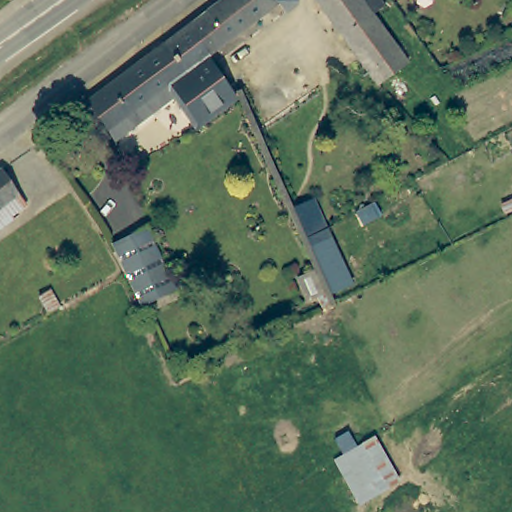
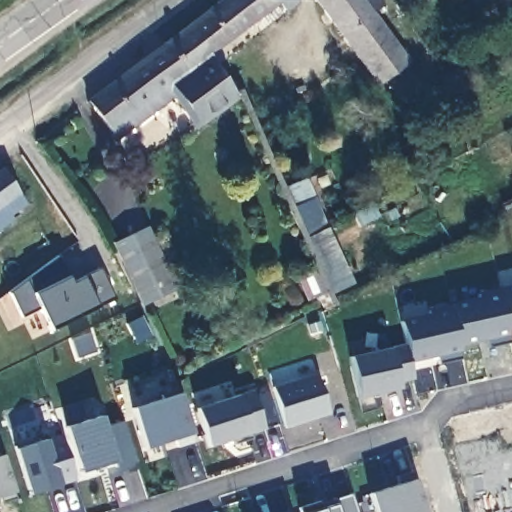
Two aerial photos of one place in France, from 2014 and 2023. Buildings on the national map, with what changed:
unchanged [(248,18),(210,48),(206,43),(180,63),(162,41),(216,0),(267,0),(246,16),(248,18)]
unchanged [(279,0),(292,0),(283,6),(279,0)]
unchanged [(416,48),(371,82),(338,39),(308,0),(379,0),(383,5),(416,48)]
unchanged [(172,90),(117,134),(90,95),(162,41),(180,63),(206,43),(210,48),(240,89),(196,119),(172,90)]
unchanged [(9,227),(5,222),(0,226),(0,165),(33,209),(9,227)]
new [(315,198),(355,284),(330,296),(290,209),(315,198)]
unchanged [(157,249),(173,286),(142,299),(127,265),(125,260),(124,261),(115,243),(149,229),(157,249)]
new [(132,291),(50,331),(39,310),(21,318),(9,292),(58,255),(70,282),(115,260),(132,291)]
new [(428,309),(476,298),(477,293),(512,284),(512,331),(509,332),(512,343),(490,347),(488,339),(460,347),(462,359),(440,364),(439,357),(410,364),(414,381),(400,384),(401,389),(360,398),(348,357),(389,348),(403,345),(400,320),(428,313),(428,309)]
new [(328,414),(284,428),(271,387),(315,373),(328,414)]
new [(266,429),(236,445),(235,439),(210,445),(198,408),(254,392),(266,429)]
new [(177,449),(177,440),(146,451),(130,409),(179,393),(192,435),(196,444),(177,449)]
new [(104,430),(125,424),(136,462),(119,468),(117,463),(82,473),(66,428),(100,419),(104,430)]
new [(77,482),(30,494),(15,449),(45,441),(61,436),(77,482)]
new [(14,490),(15,500),(4,505),(0,505),(0,456),(2,456),(14,490)]
new [(401,483),(396,477),(411,473),(412,480),(425,512),(375,512),(369,494),(401,483)]
new [(301,509),(318,504),(319,505),(352,495),(357,512),(306,512),(301,509)]

